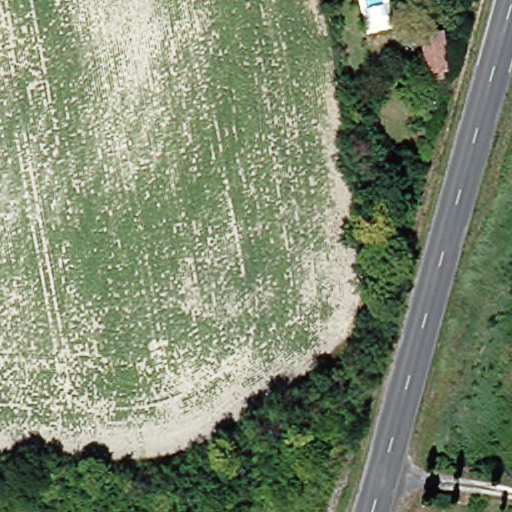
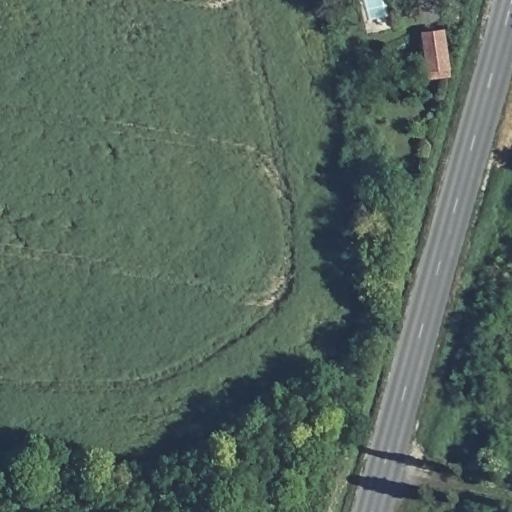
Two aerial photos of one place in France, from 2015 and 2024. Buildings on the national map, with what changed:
unchanged [(428,80),(419,36),(441,31),(451,75),(428,80)]

